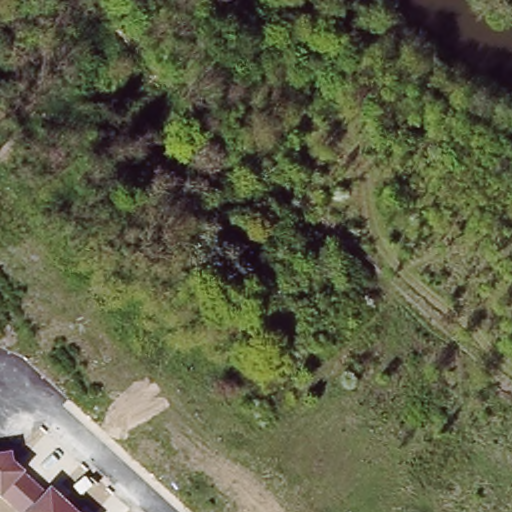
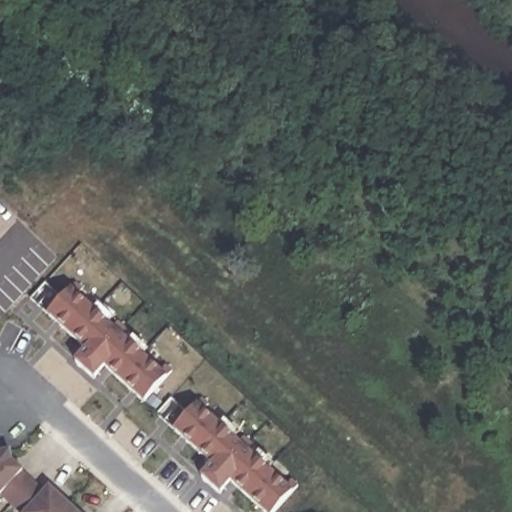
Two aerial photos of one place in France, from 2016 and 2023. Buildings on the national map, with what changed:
new [(145,403),(105,367),(93,380),(73,362),(83,348),(46,314),(71,287),(168,376),(145,403)]
new [(262,512),(231,483),(220,496),(198,478),(209,463),(173,429),(196,403),(294,491),(275,512),(262,512)]
unchanged [(12,463),(44,490),(49,486),(78,512),(16,512),(0,497),(0,454),(9,452),(12,463)]

